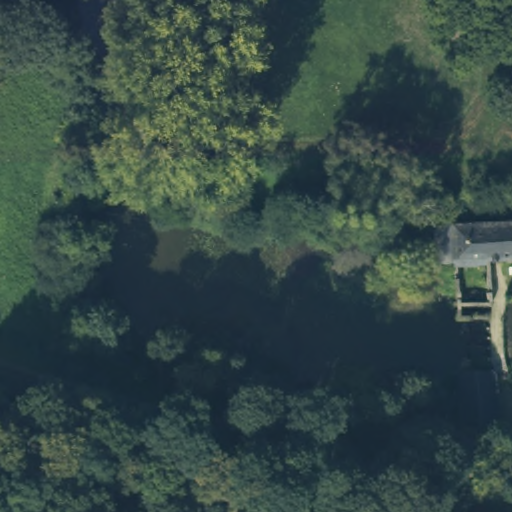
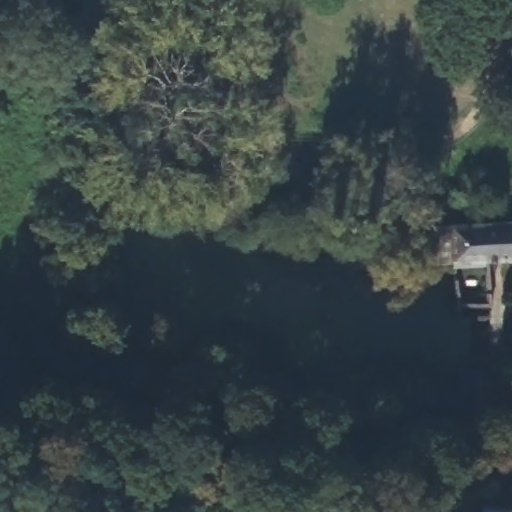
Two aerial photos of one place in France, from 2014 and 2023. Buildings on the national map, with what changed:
unchanged [(512,223),(512,258),(487,260),(486,256),(445,258),(446,227),(512,223)]
unchanged [(455,379),(492,376),(498,420),(459,424),(455,379)]
unchanged [(492,458),(488,441),(501,440),(512,439),(512,456),(492,458)]
unchanged [(490,512),(474,512),(474,510),(490,512)]

